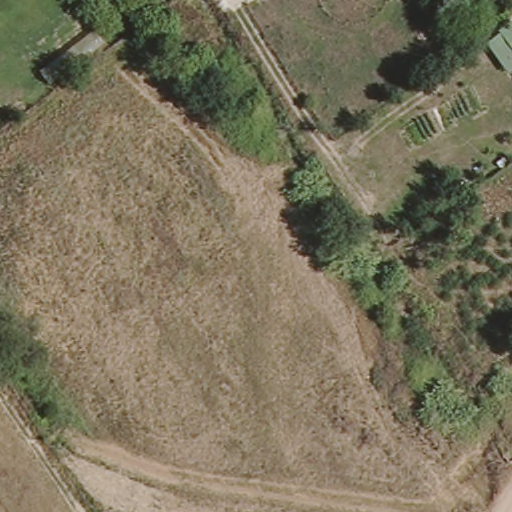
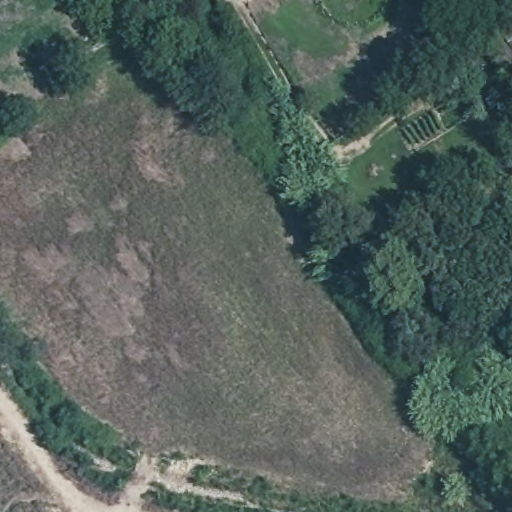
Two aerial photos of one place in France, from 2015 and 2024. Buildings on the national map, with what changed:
unchanged [(502,0),(512,0),(512,4),(508,7),(502,0)]

